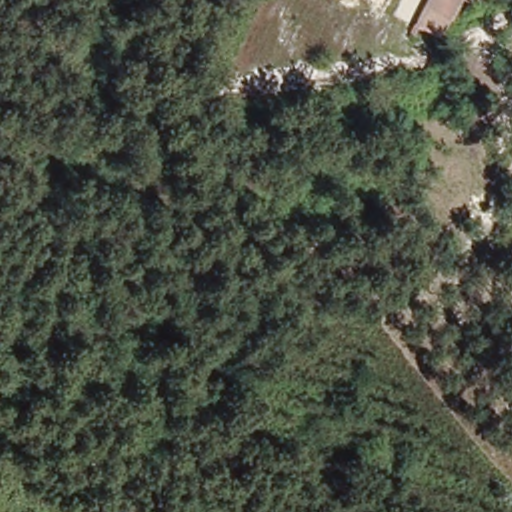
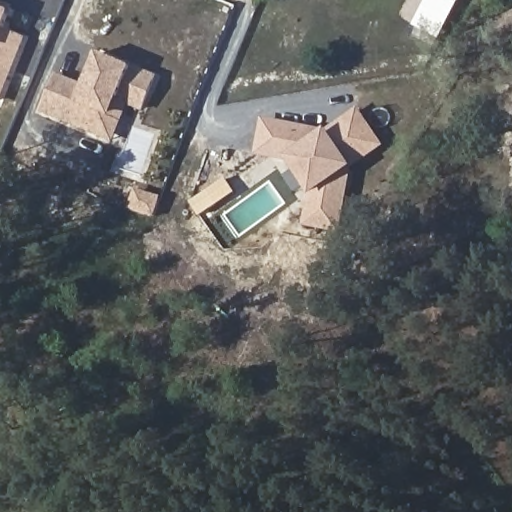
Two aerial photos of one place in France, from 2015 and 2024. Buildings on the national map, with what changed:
unchanged [(445,19),(422,7),(426,0),(456,0),(450,11),(445,19)]
new [(7,9),(5,28),(27,37),(11,76),(7,75),(4,83),(8,84),(0,102),(0,5),(7,9)]
new [(129,105),(112,143),(39,112),(56,72),(85,84),(99,51),(155,75),(140,110),(129,105)]
new [(347,171),(339,232),(301,225),(313,194),(287,156),(253,154),(261,117),(326,128),(358,107),(385,146),(352,167),(347,171)]
new [(134,187),(159,195),(152,216),(131,210),(134,200),(134,187)]

